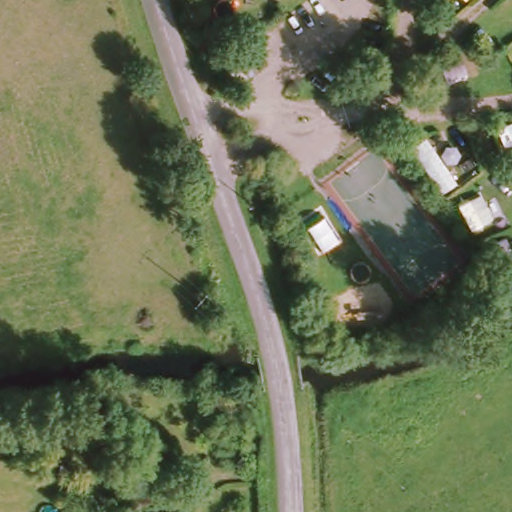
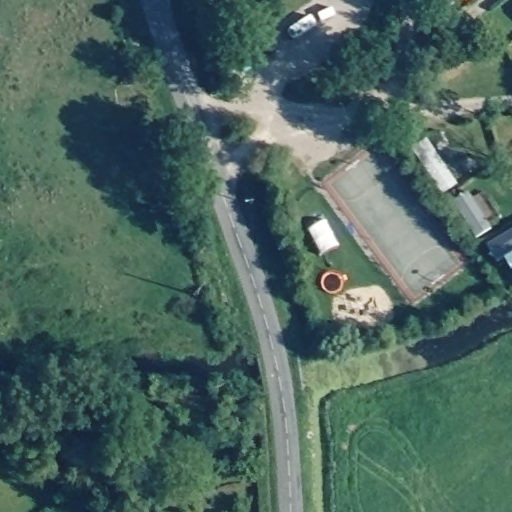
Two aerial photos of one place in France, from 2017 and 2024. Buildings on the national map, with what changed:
unchanged [(105,402),(120,398),(132,438),(117,442),(105,402)]

